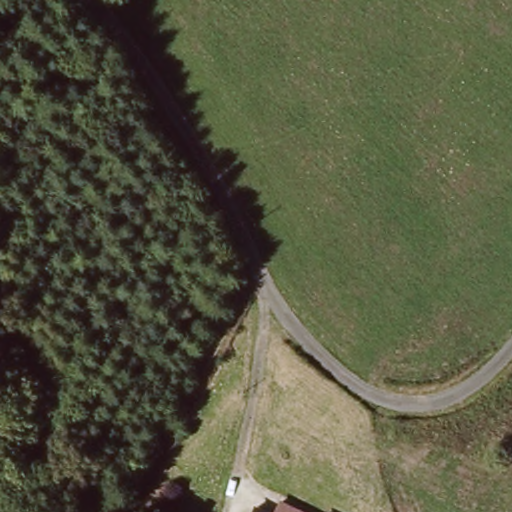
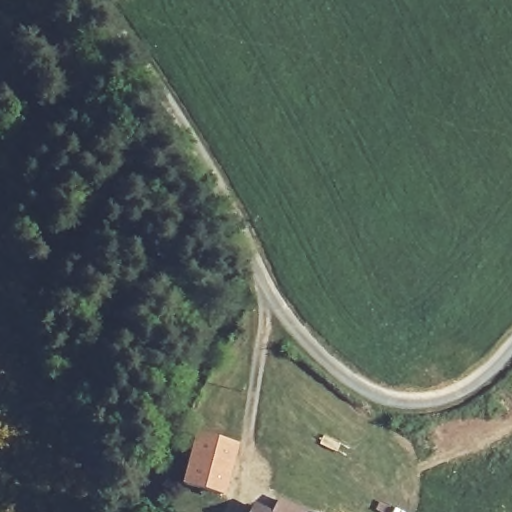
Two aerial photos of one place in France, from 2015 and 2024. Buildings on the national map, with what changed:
new [(194,432),(239,445),(225,497),(180,485),(194,432)]
unchanged [(299,512),(280,512),(284,504),(299,512)]

